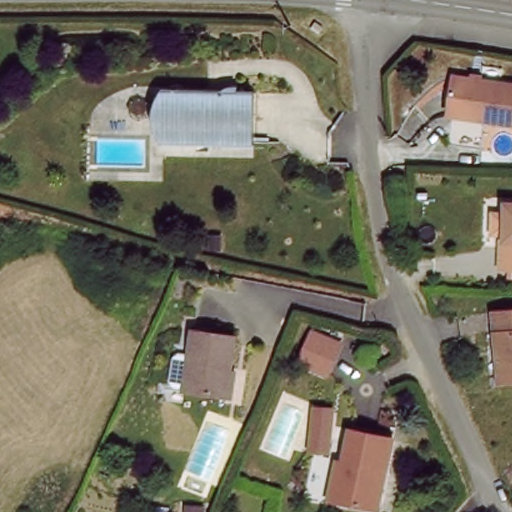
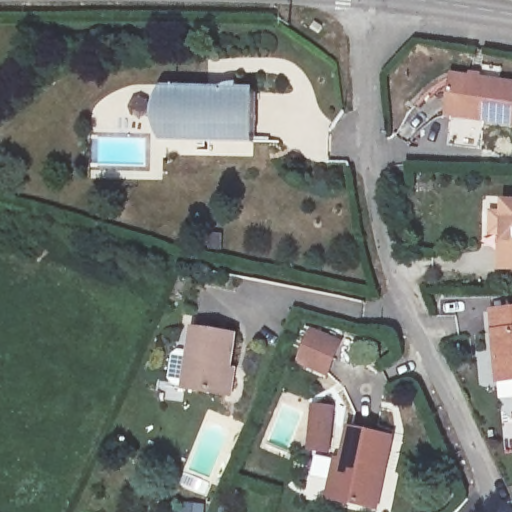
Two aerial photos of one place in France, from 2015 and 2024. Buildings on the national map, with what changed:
unchanged [(512,120),(452,117),(453,75),(512,76),(512,120)]
unchanged [(163,88),(176,78),(183,89),(221,91),(238,80),(239,92),(254,95),(251,145),(177,140),(158,138),(163,88)]
unchanged [(500,247),(507,247),(509,199),(512,199),(512,269),(499,268),(500,247)]
unchanged [(492,309),(512,307),(512,378),(498,379),(492,309)]
unchanged [(227,391),(186,382),(198,327),(237,335),(227,391)]
unchanged [(346,341),(330,379),(298,365),(313,328),(346,341)]
unchanged [(334,455),(309,452),(314,405),(338,406),(334,455)]
unchanged [(375,507),(331,500),(338,458),(348,460),(354,423),(390,430),(375,507)]

